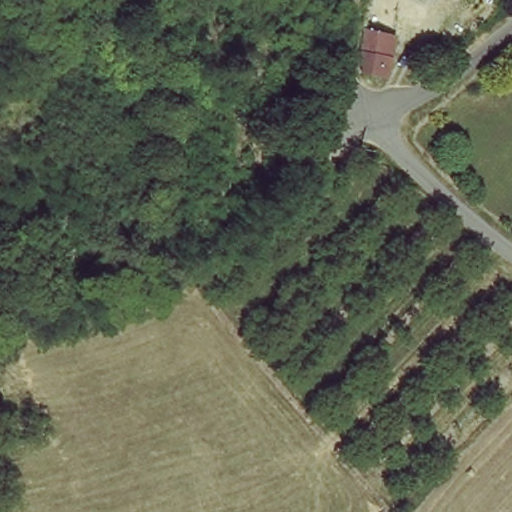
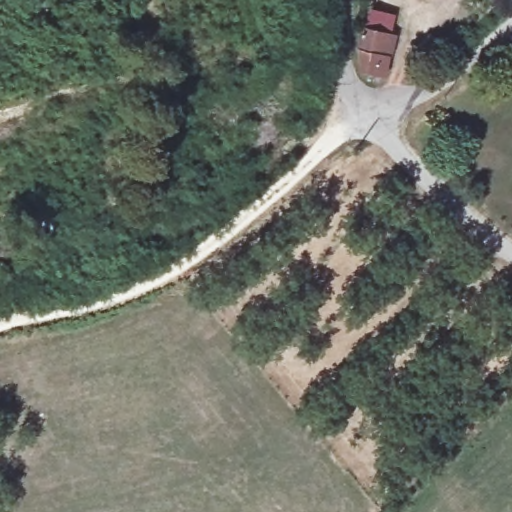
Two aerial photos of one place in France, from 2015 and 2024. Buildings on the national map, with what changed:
unchanged [(376,9),(407,14),(395,75),(368,67),(368,50),(376,9)]

